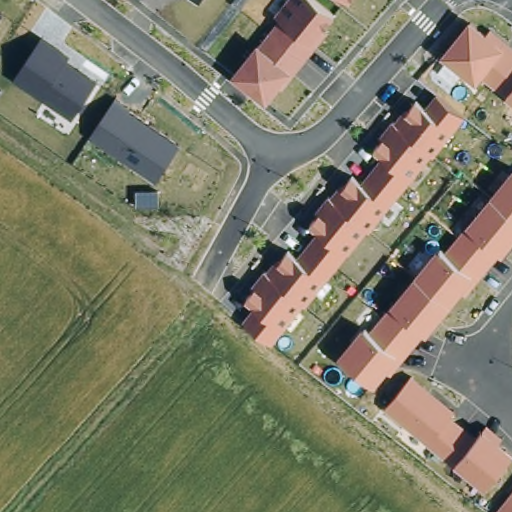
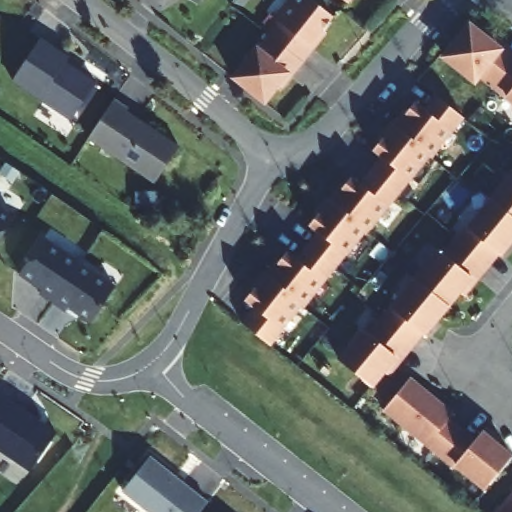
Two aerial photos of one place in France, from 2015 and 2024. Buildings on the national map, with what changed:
unchanged [(195,0),(195,1),(193,0),(195,0)]
unchanged [(225,75),(250,40),(256,46),(277,23),(272,18),(287,0),(310,0),(331,17),(262,103),(225,75)]
unchanged [(471,85),(434,57),(464,18),(494,41),(496,34),(512,46),(512,103),(479,76),(471,85)]
unchanged [(68,117),(11,73),(37,34),(67,54),(63,62),(92,78),(68,117)]
unchanged [(462,119),(269,346),(239,323),(250,308),(241,299),(284,250),(293,255),(312,231),(303,224),(349,173),(357,180),(377,156),(367,147),(411,98),(418,103),(430,90),(462,119)]
unchanged [(151,180),(84,134),(110,99),(175,143),(151,180)]
unchanged [(457,293),(425,334),(387,376),(381,372),(370,385),(334,356),(356,326),(363,330),(385,305),(435,245),(439,251),(463,222),(509,167),(512,169),(512,236),(462,297),(457,293)]
new [(13,221),(0,240),(0,213),(13,221)]
new [(81,261),(54,301),(40,293),(43,288),(21,273),(44,237),(81,261)]
new [(115,284),(93,322),(69,307),(66,310),(54,301),(81,261),(115,284)]
unchanged [(508,451),(482,485),(382,409),(407,377),(452,412),(448,418),(471,437),(481,428),(508,451)]
new [(57,430),(32,470),(0,449),(0,392),(57,430)]
new [(200,512),(151,512),(123,490),(151,455),(209,500),(200,512)]
unchanged [(512,487),(512,512),(497,512),(495,510),(512,487)]

